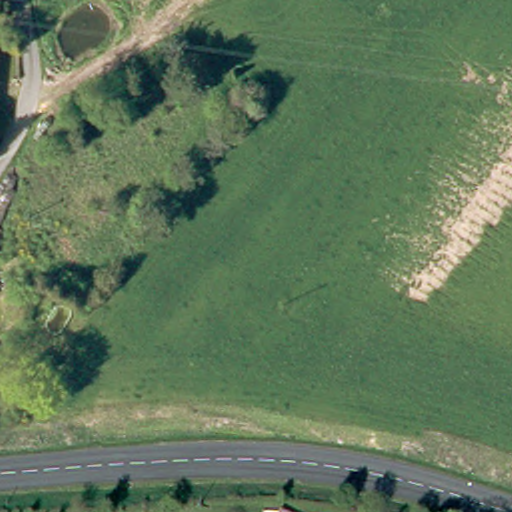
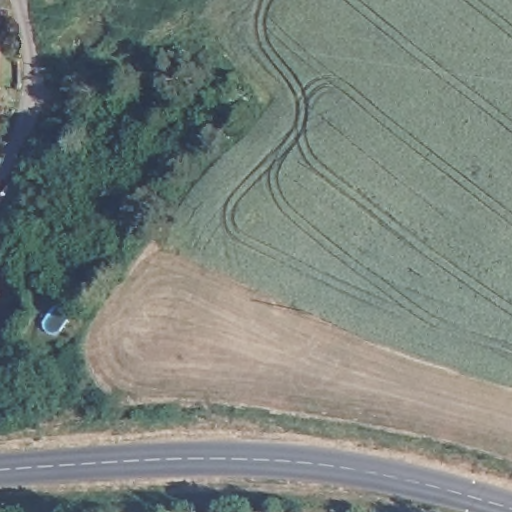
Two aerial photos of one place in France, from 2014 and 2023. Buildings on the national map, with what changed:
unchanged [(0,255),(0,243),(6,249),(0,255)]

